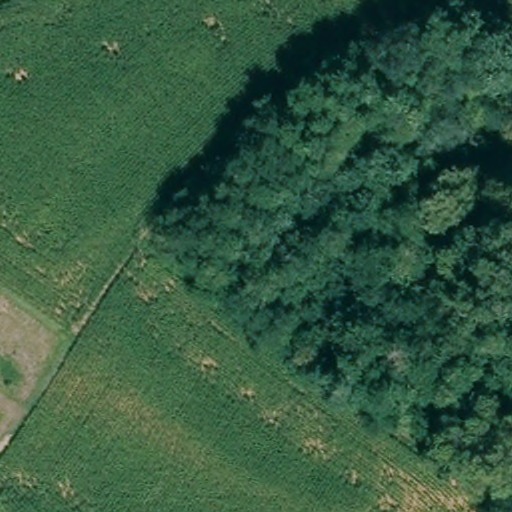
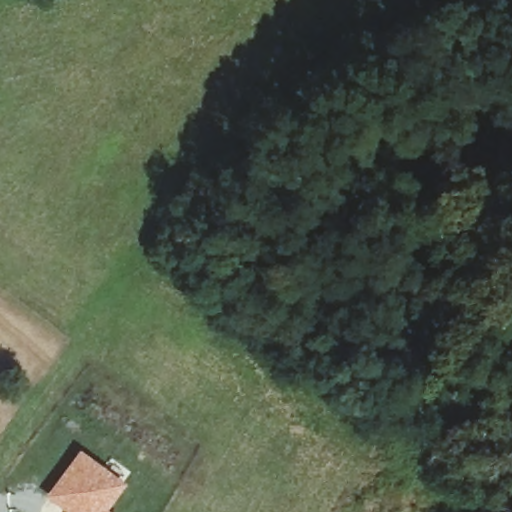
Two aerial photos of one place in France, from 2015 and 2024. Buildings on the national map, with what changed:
new [(126,481),(108,508),(113,512),(63,512),(44,496),(79,448),(126,481)]

